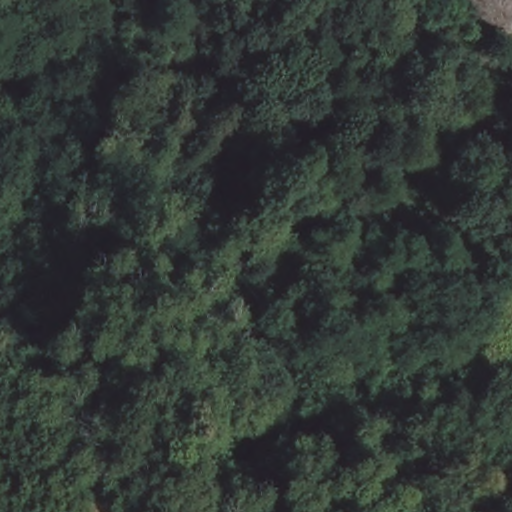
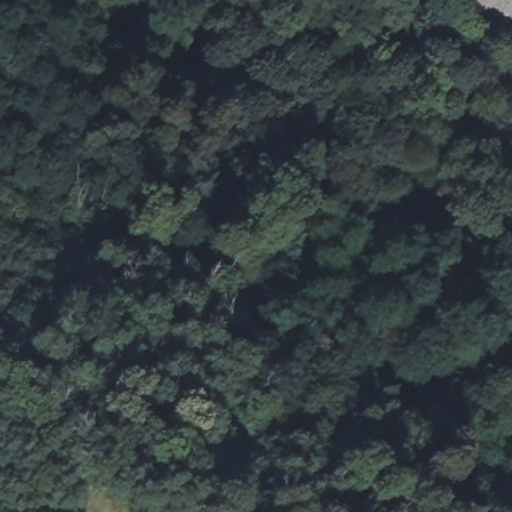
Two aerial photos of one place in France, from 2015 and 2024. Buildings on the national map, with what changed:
unchanged [(507,31),(456,1),(456,0),(512,0),(512,22),(507,31)]

